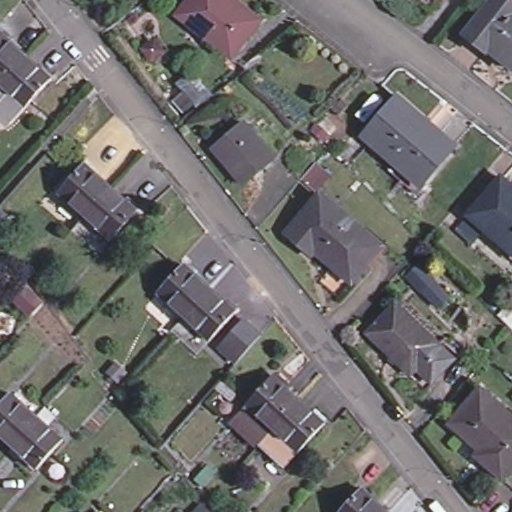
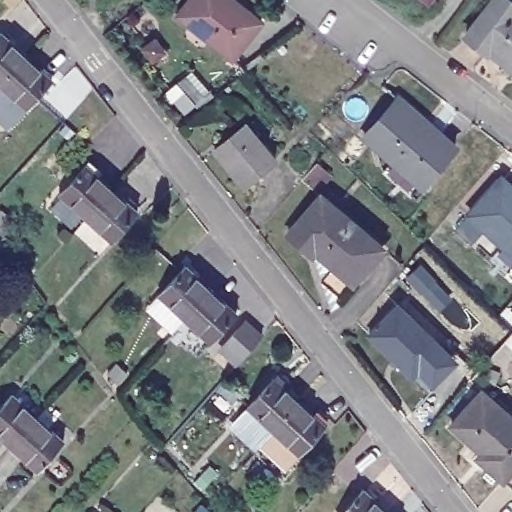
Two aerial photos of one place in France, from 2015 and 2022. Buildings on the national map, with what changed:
unchanged [(228,0),(260,25),(232,63),(176,20),(192,0),(228,0)]
unchanged [(492,41),(487,48),(466,30),(490,0),(512,0),(512,57),(492,41)]
unchanged [(0,85),(4,81),(0,77),(0,32),(2,30),(29,53),(55,76),(30,104),(15,121),(0,108),(0,85)]
unchanged [(397,93),(455,142),(420,181),(364,131),(397,93)]
unchanged [(244,118),(274,153),(242,179),(212,144),(244,118)]
unchanged [(85,211),(58,188),(82,161),(109,184),(85,211)]
unchanged [(502,178),(512,187),(512,253),(469,215),(502,178)]
unchanged [(135,207),(110,234),(85,211),(109,184),(135,207)]
unchanged [(325,196),(385,247),(357,281),(311,243),(307,247),(292,235),(325,196)]
unchanged [(170,327),(184,311),(158,288),(183,261),(209,284),(235,308),(210,335),(196,350),(170,327)]
unchanged [(431,379),(416,365),(410,371),(367,329),(396,300),(440,341),(454,355),(431,379)]
unchanged [(260,331),(238,355),(221,339),(243,315),(260,331)]
unchanged [(480,384),(512,412),(512,461),(502,473),(482,456),(487,452),(450,418),(480,384)]
unchanged [(272,438),(247,415),(272,387),(297,410),(272,438)]
unchanged [(0,432),(0,401),(9,391),(35,413),(10,441),(0,432)]
unchanged [(324,434),(299,462),(272,438),(297,410),(324,434)]
unchanged [(61,436),(37,464),(10,441),(35,413),(61,436)]
unchanged [(366,495),(385,512),(350,512),(366,495)]

